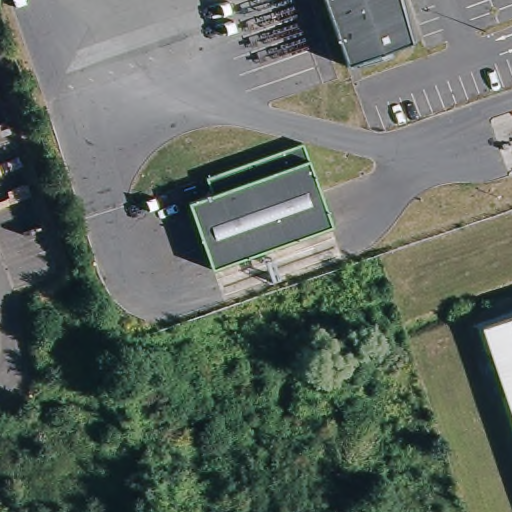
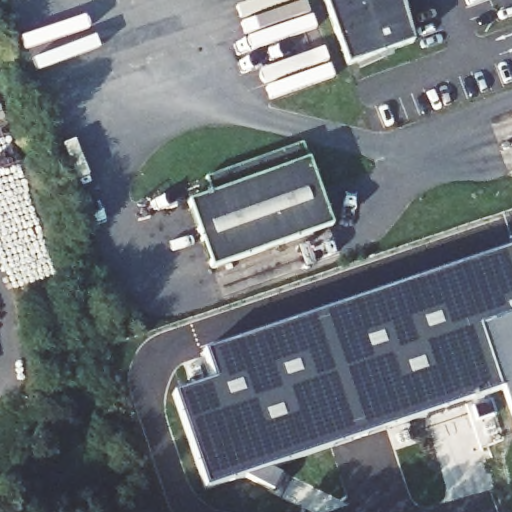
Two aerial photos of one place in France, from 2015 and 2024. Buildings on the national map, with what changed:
unchanged [(324,0),(399,0),(411,44),(347,64),(324,0)]
unchanged [(211,272),(187,206),(213,197),(204,177),(300,145),(307,165),(331,226),(211,272)]
new [(482,327),(502,387),(205,491),(172,396),(215,381),(207,352),(512,250),(512,317),(482,327)]
unchanged [(482,327),(512,317),(512,416),(482,327)]

